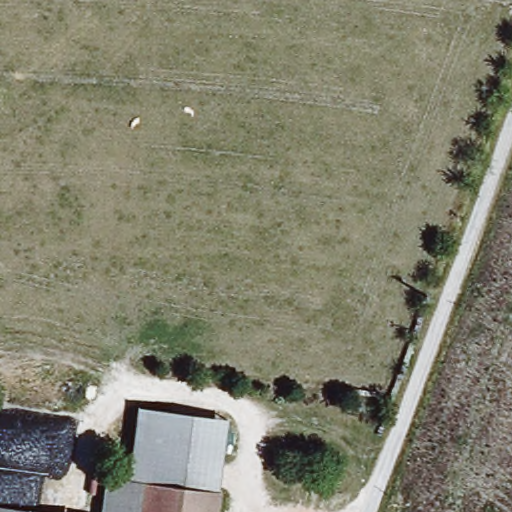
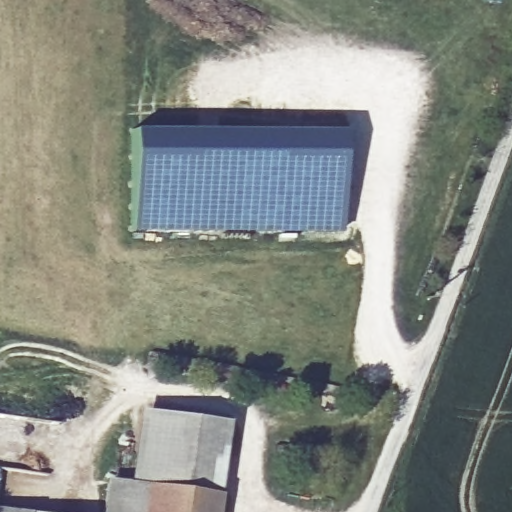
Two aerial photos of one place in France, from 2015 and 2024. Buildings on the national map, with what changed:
new [(128,131),(338,133),(338,233),(128,231),(128,131)]
unchanged [(130,481),(140,406),(232,420),(220,512),(101,512),(106,479),(130,481)]
unchanged [(0,512),(0,508),(30,512),(0,512)]

